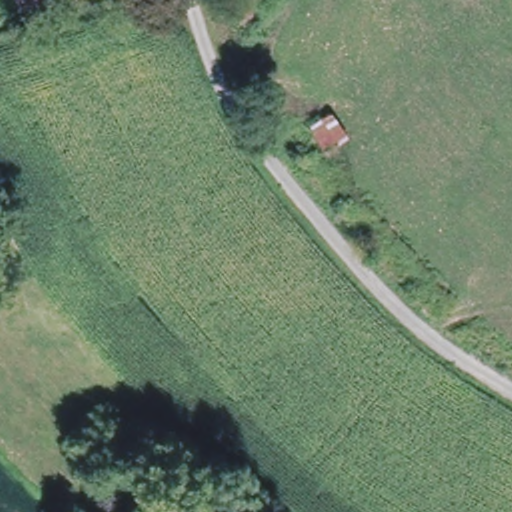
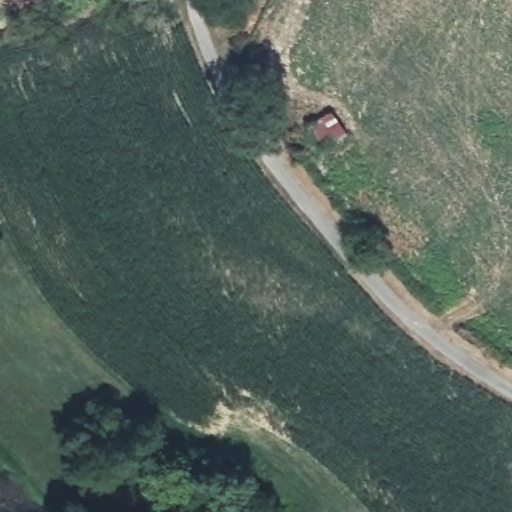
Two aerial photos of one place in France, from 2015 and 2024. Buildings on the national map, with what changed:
unchanged [(38,0),(19,8),(15,0),(38,0)]
unchanged [(323,147),(307,121),(331,106),(356,110),(347,135),(323,147)]

